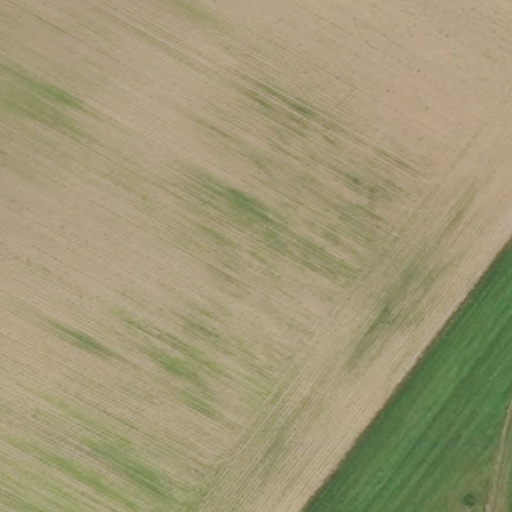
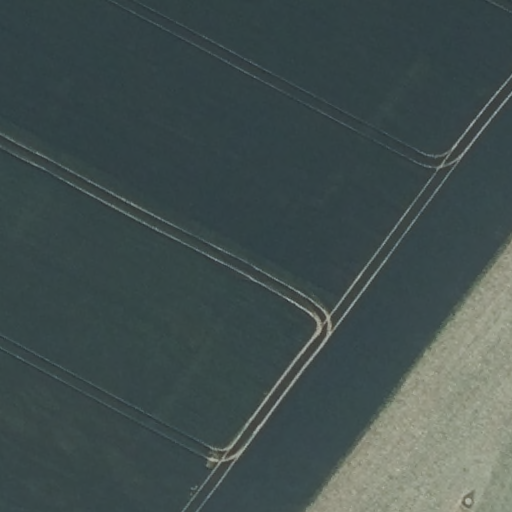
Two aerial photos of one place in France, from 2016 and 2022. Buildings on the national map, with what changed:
[]

